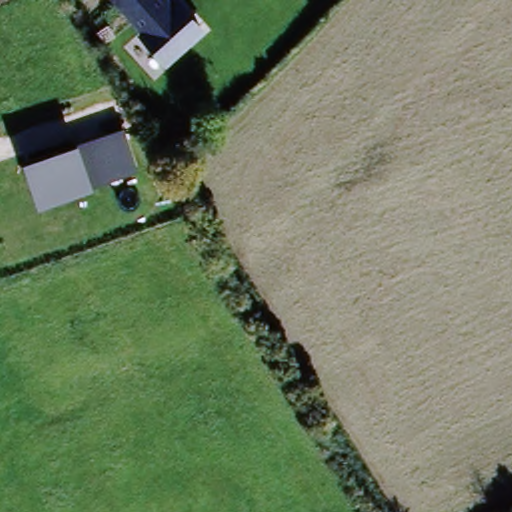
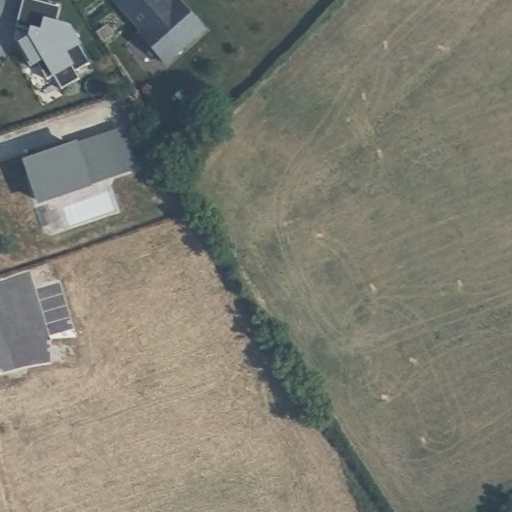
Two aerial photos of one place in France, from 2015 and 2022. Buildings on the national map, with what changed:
new [(63,7),(59,24),(71,26),(92,64),(78,71),(82,79),(64,90),(56,76),(50,80),(40,63),(33,67),(20,45),(32,38),(34,30),(19,26),(25,0),(36,0),(63,7)]
unchanged [(174,0),(177,0),(206,32),(165,70),(135,35),(138,32),(110,0),(169,0),(171,2),(174,0)]
unchanged [(75,141),(78,149),(122,133),(135,172),(37,206),(21,161),(75,141)]

